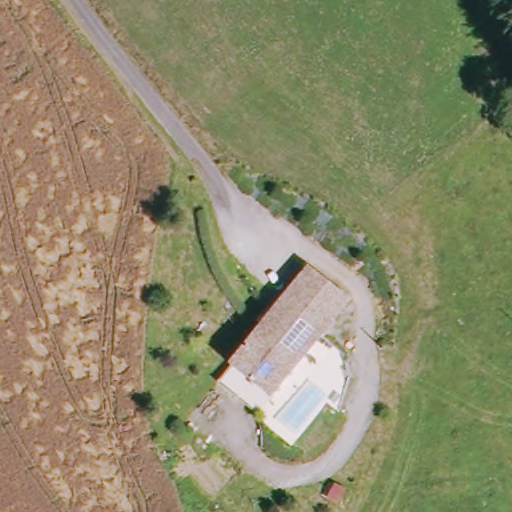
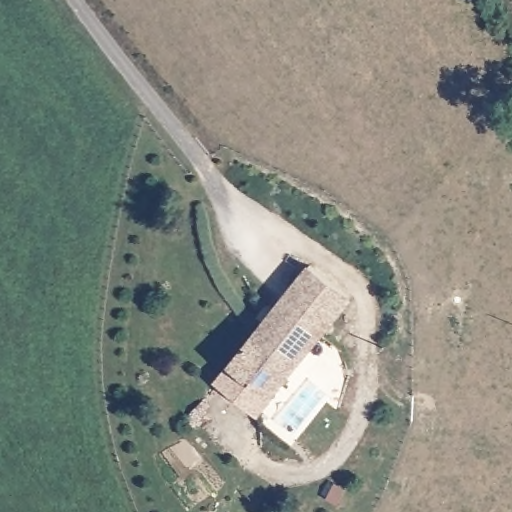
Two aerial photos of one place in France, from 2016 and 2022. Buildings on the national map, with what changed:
unchanged [(356,300),(263,413),(222,379),(313,266),(356,300)]

